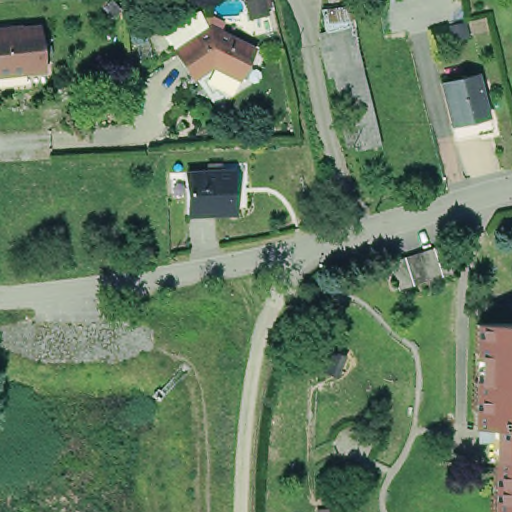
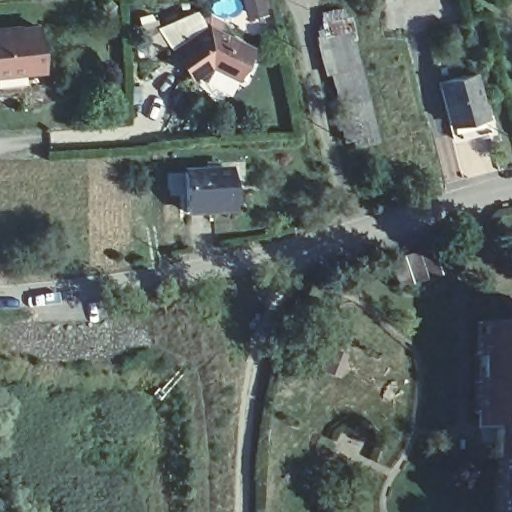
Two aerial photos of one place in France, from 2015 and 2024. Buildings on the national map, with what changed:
unchanged [(342,148),(319,26),(352,22),(374,142),(342,148)]
unchanged [(252,39),(241,68),(218,59),(198,74),(179,50),(214,24),(252,39)]
unchanged [(39,68),(0,71),(0,29),(36,26),(39,68)]
unchanged [(439,80),(468,73),(474,71),(489,128),(483,130),(453,137),(439,80)]
unchanged [(236,169),(238,209),(192,212),(189,172),(236,169)]
unchanged [(386,256),(400,251),(414,245),(429,240),(444,235),(454,261),(439,268),(426,273),(412,279),(399,284),(396,277),(386,256)]
unchanged [(498,463),(499,433),(483,432),(484,416),(477,417),(481,336),(481,326),(486,326),(512,326),(512,512),(504,512),(504,464),(498,463)]

